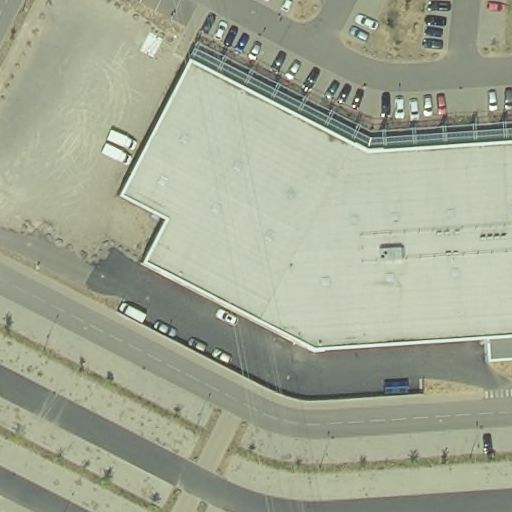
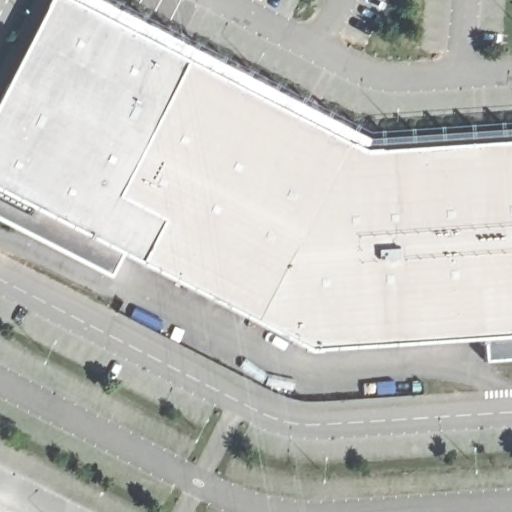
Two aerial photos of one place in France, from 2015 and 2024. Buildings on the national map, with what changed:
new [(188,62),(119,196),(165,220),(141,263),(122,254),(110,277),(0,221),(0,94),(49,0),(69,0),(188,62)]
unchanged [(365,151),(512,141),(512,359),(486,361),(485,338),(310,351),(141,263),(165,220),(119,196),(188,62),(365,151)]

